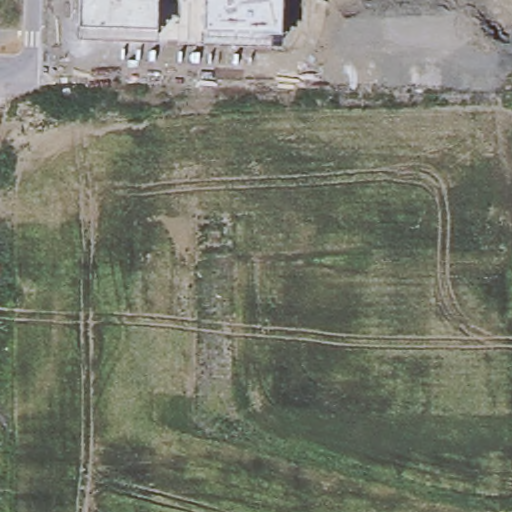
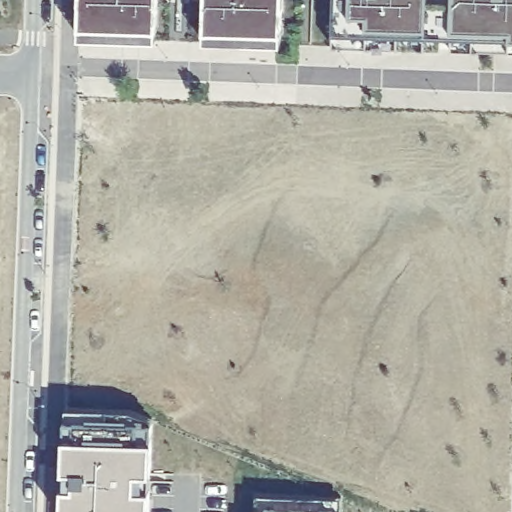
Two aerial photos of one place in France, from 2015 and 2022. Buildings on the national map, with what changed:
unchanged [(155,40),(80,37),(81,0),(156,0),(155,40)]
unchanged [(281,44),(205,43),(206,0),(282,0),(281,44)]
new [(334,0),(427,0),(426,23),(430,22),(430,36),(439,35),(439,47),(424,47),(424,36),(332,34),(334,0)]
new [(451,0),(512,0),(512,40),(450,38),(451,0)]
new [(151,440),(149,512),(61,512),(64,437),(64,421),(65,408),(131,409),(152,418),(152,422),(151,440)]
new [(341,512),(255,512),(256,494),(342,497),(341,512)]

